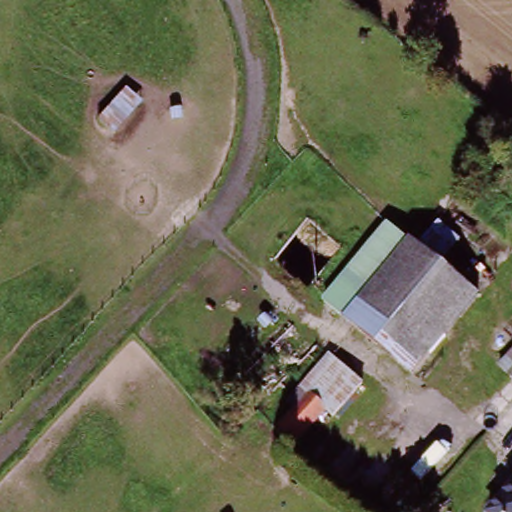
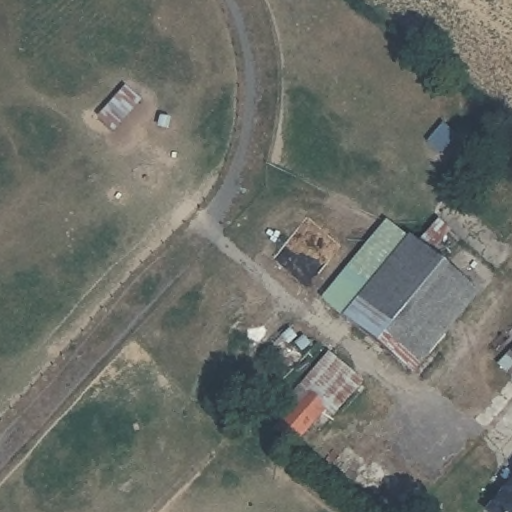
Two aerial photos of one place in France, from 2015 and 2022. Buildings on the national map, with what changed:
unchanged [(100,117),(132,84),(150,101),(118,133),(100,117)]
unchanged [(440,220),(463,238),(445,262),(484,294),(420,374),(353,320),(328,299),(346,276),(392,221),(416,240),(421,244),(440,220)]
unchanged [(285,395),(324,351),(357,379),(327,414),(321,409),(305,395),(296,405),(285,395)]
unchanged [(512,358),(512,379),(501,370),(512,358)]
unchanged [(305,395),(321,409),(289,446),(272,432),(296,405),(305,395)]
unchanged [(512,512),(491,512),(512,487),(512,512)]

